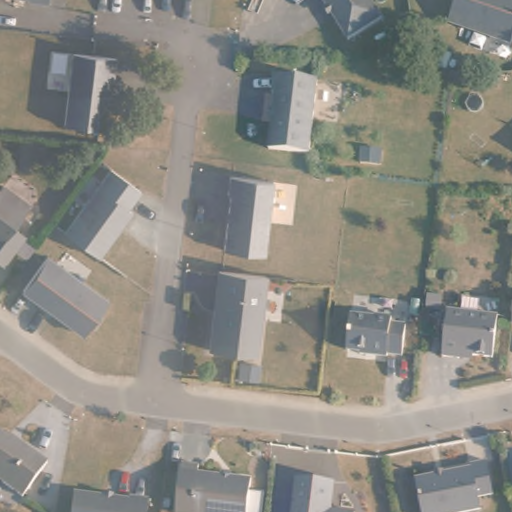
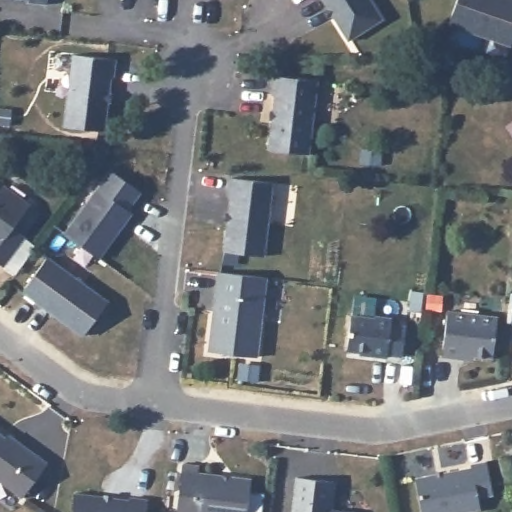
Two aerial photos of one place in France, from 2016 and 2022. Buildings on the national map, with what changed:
unchanged [(22,2),(22,0),(41,0),(40,5),(22,2)]
unchanged [(348,43),(320,0),(369,0),(382,21),(348,43)]
unchanged [(509,50),(447,27),(450,22),(457,0),(504,0),(512,3),(512,41),(509,50)]
unchanged [(115,72),(113,89),(111,89),(104,144),(64,138),(73,66),(115,72)]
unchanged [(315,82),(306,156),(266,150),(273,95),(270,95),(273,76),(315,82)]
unchanged [(106,177),(135,197),(123,215),(127,219),(95,265),(60,240),(106,177)]
unchanged [(268,190),(259,262),(219,257),(226,202),(223,202),(226,184),(268,190)]
unchanged [(7,231),(19,240),(0,266),(0,191),(24,208),(7,231)]
unchanged [(104,308),(80,342),(19,298),(44,265),(104,308)]
unchanged [(261,282),(253,361),(206,356),(214,277),(261,282)]
unchanged [(504,325),(508,294),(512,295),(512,326),(504,325)]
unchanged [(387,316),(386,321),(402,323),(397,354),(381,352),(381,356),(355,352),(355,350),(342,348),(347,313),(369,317),(370,312),(387,316)]
unchanged [(494,323),(487,365),(455,360),(454,365),(438,362),(443,317),(494,323)]
unchanged [(45,460),(17,498),(0,486),(0,430),(1,428),(45,460)]
unchanged [(246,477),(242,512),(172,512),(177,462),(193,465),(192,471),(246,477)]
unchanged [(468,470),(468,466),(483,463),(490,495),(476,498),(480,510),(470,512),(419,512),(412,482),(468,470)]
unchanged [(330,483),(326,512),(290,512),(293,480),(330,483)]
unchanged [(129,500),(130,496),(148,499),(146,512),(71,512),(74,492),(129,500)]

